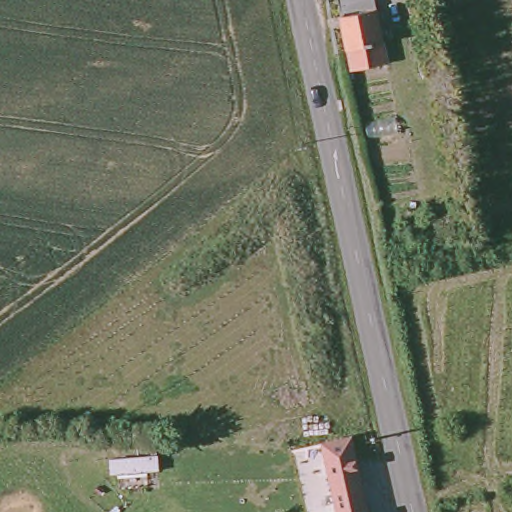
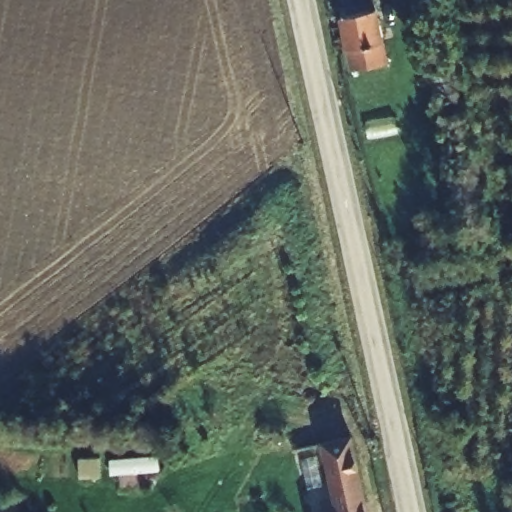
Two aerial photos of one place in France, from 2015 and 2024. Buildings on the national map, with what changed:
unchanged [(350,64),(337,0),(369,0),(381,58),(350,64)]
unchanged [(427,23),(431,44),(433,54),(415,57),(409,27),(413,27),(427,23)]
unchanged [(337,508),(323,438),(354,441),(368,512),(323,512),(337,508)]

